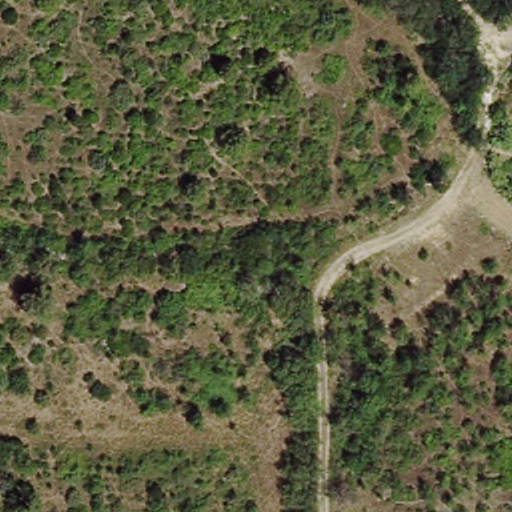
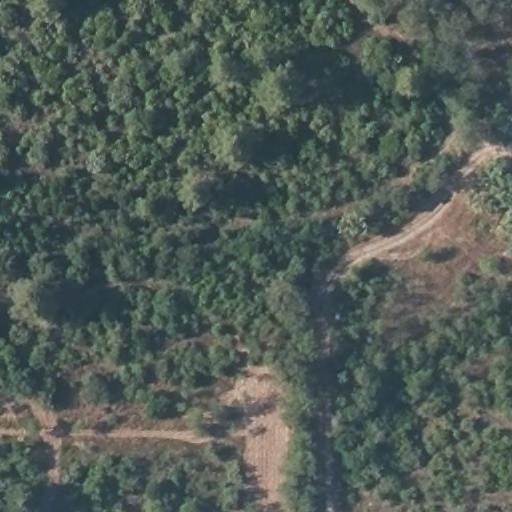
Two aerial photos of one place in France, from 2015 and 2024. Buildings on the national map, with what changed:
[]

